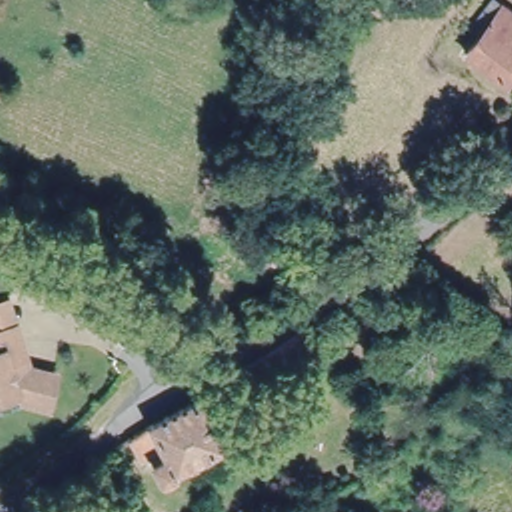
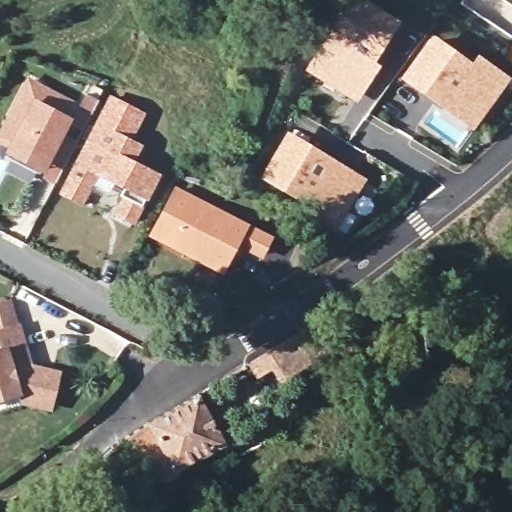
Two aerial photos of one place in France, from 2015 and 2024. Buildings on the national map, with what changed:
demolished [(512,9),(512,75),(506,83),(466,53),(482,31),(476,26),(484,16),(479,12),(488,0),(500,0),(512,9)]
new [(355,95),(315,69),(358,2),(397,29),(378,58),(372,67),(355,95)]
new [(471,132),(437,106),(441,104),(400,78),(432,34),(472,63),(478,55),(511,78),(471,132)]
new [(40,174),(42,169),(10,151),(12,146),(0,141),(0,140),(8,124),(22,96),(31,81),(42,87),(76,104),(61,132),(77,141),(56,182),(40,174)]
new [(87,93),(99,100),(85,127),(73,120),(87,93)]
new [(104,110),(111,97),(142,113),(129,140),(140,145),(132,161),(157,174),(133,221),(117,213),(125,197),(120,195),(125,186),(97,172),(89,189),(82,202),(62,192),(69,179),(104,110)]
new [(321,152),(360,175),(356,181),(331,221),(302,203),(305,197),(266,174),(291,133),(321,152)]
new [(149,239),(175,187),(271,236),(263,259),(236,246),(224,276),(149,239)]
unchanged [(25,318),(27,317),(32,336),(38,357),(66,364),(57,396),(29,389),(30,395),(0,404),(0,298),(17,293),(25,318)]
demolished [(324,354),(281,380),(272,366),(257,375),(250,362),(307,327),(324,354)]
unchanged [(233,440),(185,465),(186,469),(174,475),(170,474),(157,450),(162,448),(160,444),(154,447),(145,430),(157,422),(156,420),(209,393),(233,440)]

